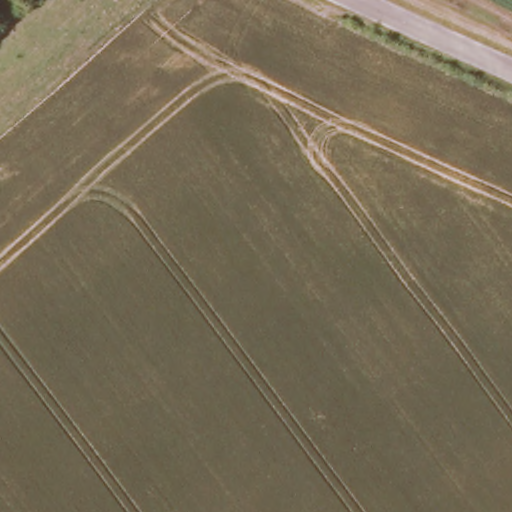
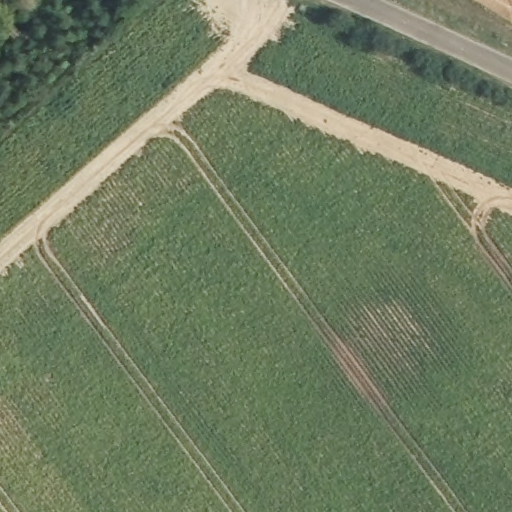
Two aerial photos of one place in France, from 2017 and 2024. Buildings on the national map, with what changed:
[]

